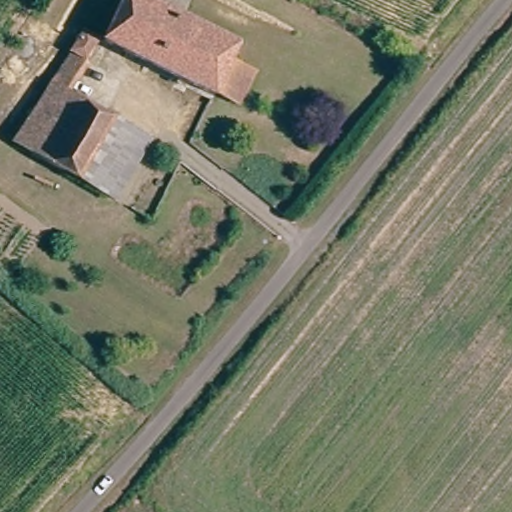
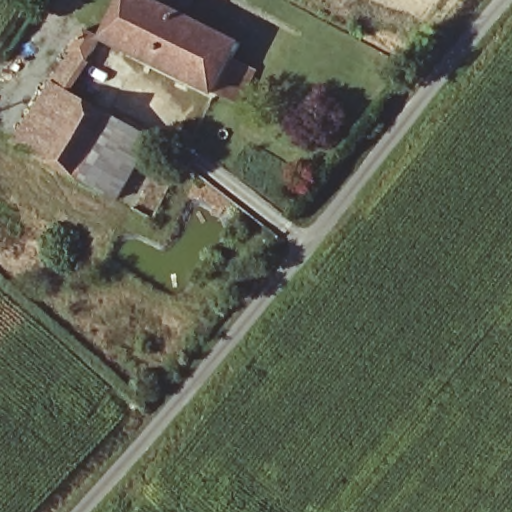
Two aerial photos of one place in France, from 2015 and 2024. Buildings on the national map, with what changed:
unchanged [(248,62),(233,95),(211,85),(209,91),(98,35),(115,0),(164,0),(236,34),(227,55),(248,62)]
unchanged [(81,26),(94,33),(65,90),(150,134),(121,196),(13,144),(81,26)]

